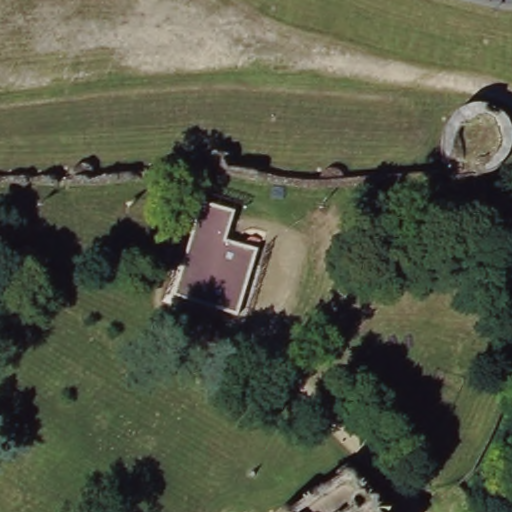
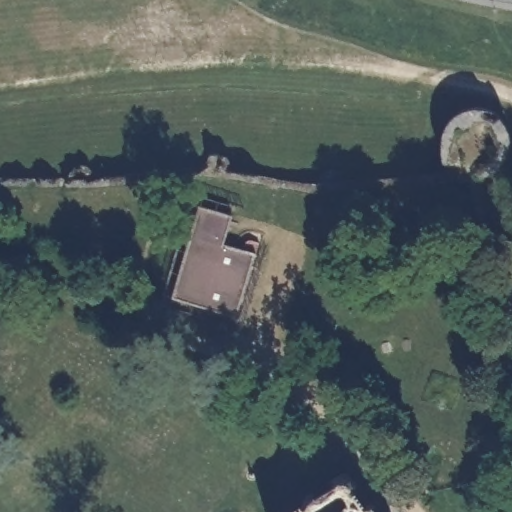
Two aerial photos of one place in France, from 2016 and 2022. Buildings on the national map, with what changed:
unchanged [(208,208),(250,222),(242,251),(249,252),(250,250),(256,245),(260,244),(267,246),(244,322),(179,302),(208,208)]
unchanged [(309,498),(309,494),(311,491),(314,490),(318,490),(321,491),(323,493),(339,480),(338,476),(340,473),(343,471),(346,470),(349,471),(352,474),(353,476),(353,479),(351,482),(348,485),(360,500),(364,498),(368,499),(371,502),(372,504),(372,505),(372,508),(369,511),(370,512),(300,512),(311,502),(309,498)]
unchanged [(431,502),(460,484),(463,489),(479,512),(431,512),(426,505),(431,502)]

